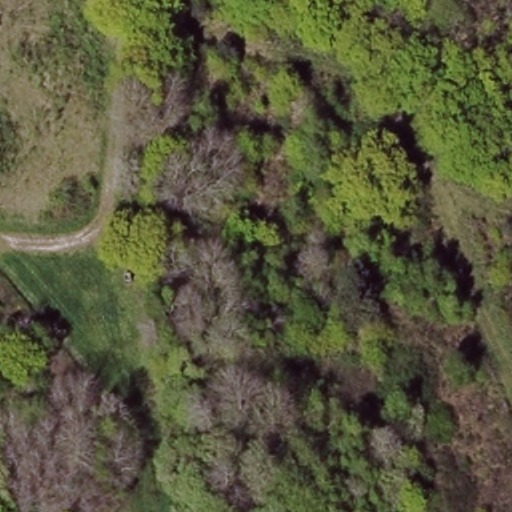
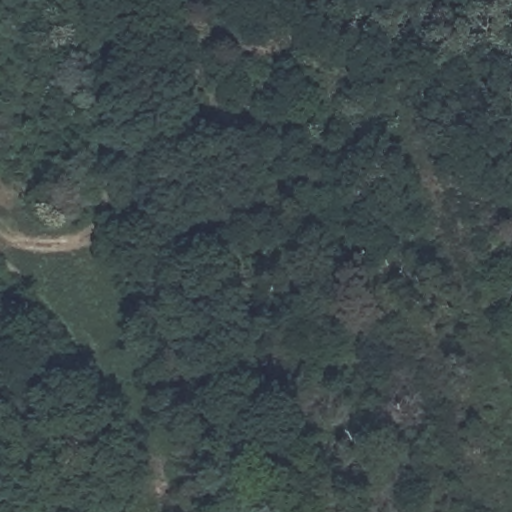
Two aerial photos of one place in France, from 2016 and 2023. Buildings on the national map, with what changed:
unchanged [(308,87),(379,145),(355,172),(285,114),(308,87)]

